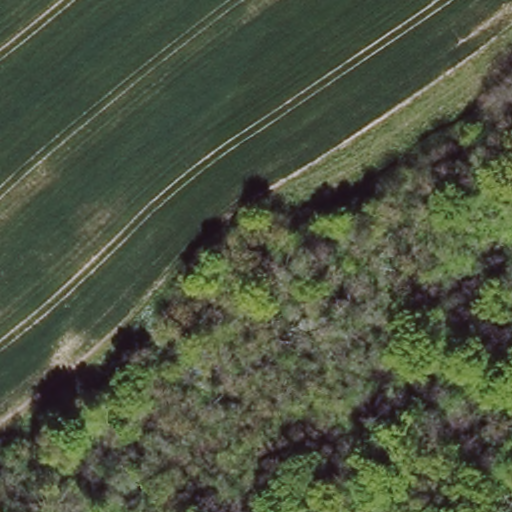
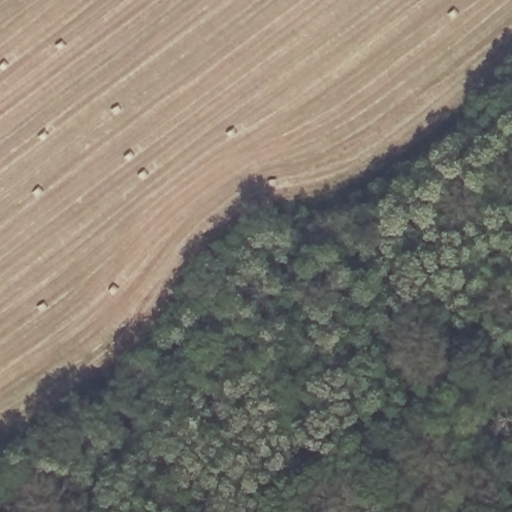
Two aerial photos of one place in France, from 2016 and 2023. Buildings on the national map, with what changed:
[]

